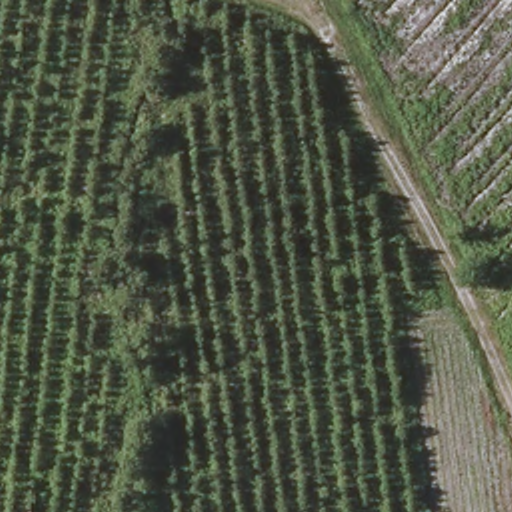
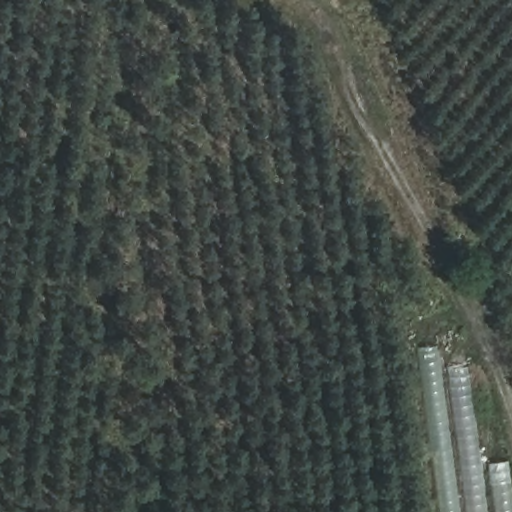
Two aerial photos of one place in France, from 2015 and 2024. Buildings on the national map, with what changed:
new [(444,368),(471,366),(484,465),(511,461),(512,469),(512,512),(439,512),(418,348),(442,345),(444,368)]

